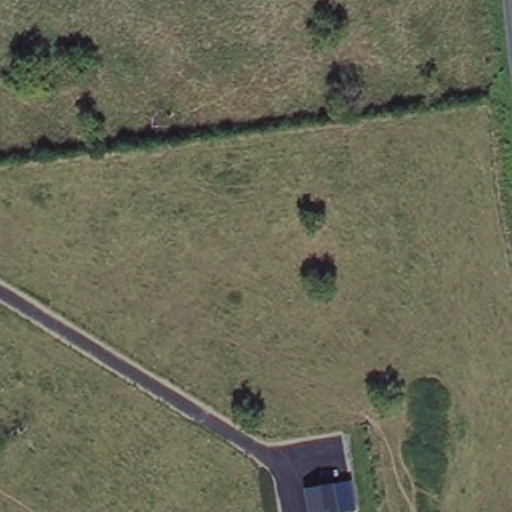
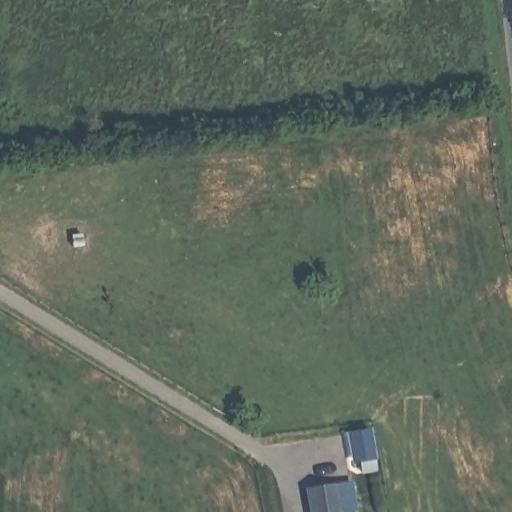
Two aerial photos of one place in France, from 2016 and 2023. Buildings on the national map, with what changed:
unchanged [(351,512),(308,512),(304,488),(352,480),(357,511),(351,512)]

